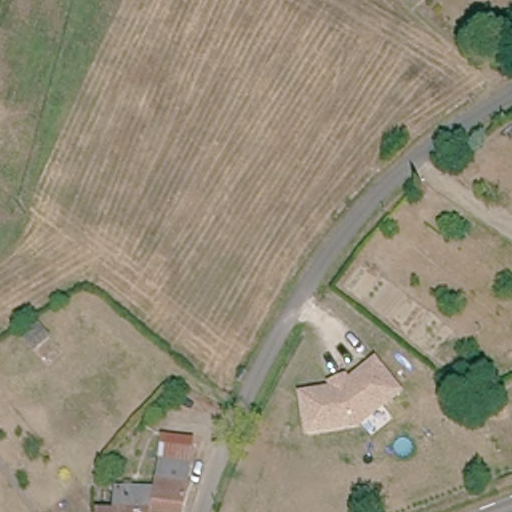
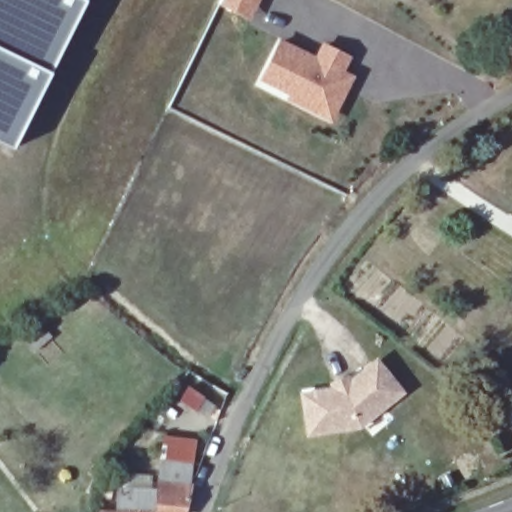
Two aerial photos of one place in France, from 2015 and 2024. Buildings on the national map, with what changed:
new [(49,75),(0,51),(0,0),(85,0),(49,75)]
new [(222,0),(260,0),(250,22),(219,7),(222,0)]
new [(280,40),(313,55),(320,42),(352,57),(344,72),(354,76),(332,125),(298,108),(257,84),(280,40)]
new [(49,75),(12,153),(0,146),(0,51),(49,75)]
unchanged [(22,336),(37,323),(49,336),(34,349),(22,336)]
unchanged [(310,433),(304,394),(335,389),(333,384),(347,378),(350,383),(377,361),(402,391),(361,425),(310,433)]
unchanged [(157,491),(158,483),(160,462),(162,436),(194,440),(191,466),(188,487),(190,487),(184,512),(117,512),(117,490),(157,491)]

